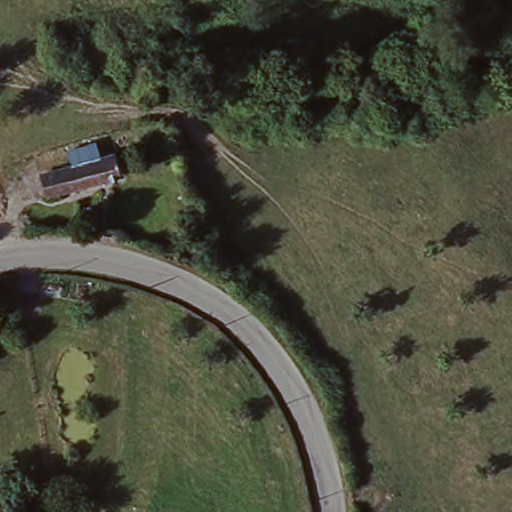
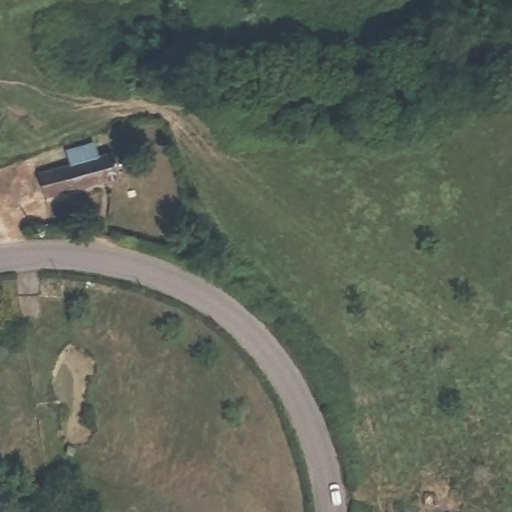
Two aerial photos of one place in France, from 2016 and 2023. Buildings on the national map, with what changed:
unchanged [(64,154),(93,144),(99,160),(114,156),(122,180),(74,194),(43,204),(37,181),(68,171),(64,154)]

